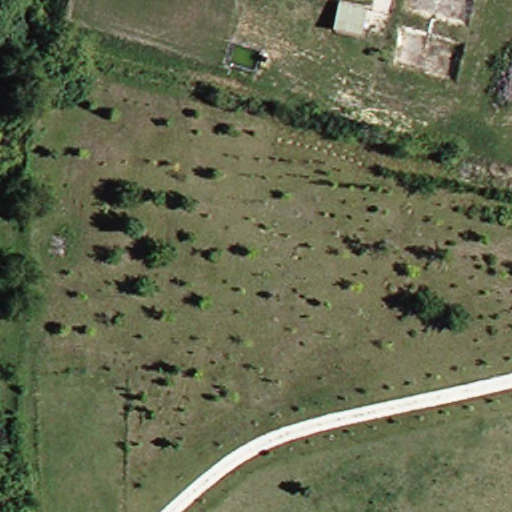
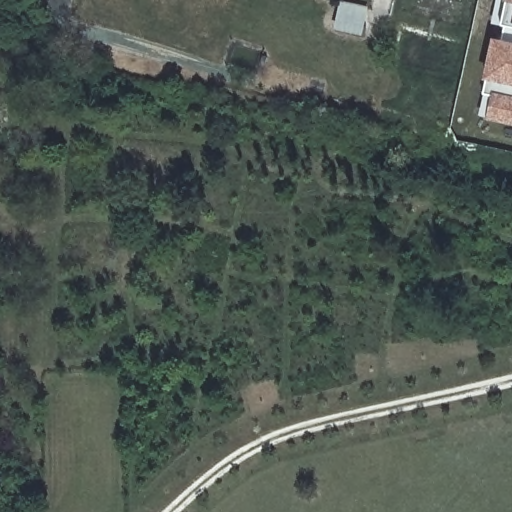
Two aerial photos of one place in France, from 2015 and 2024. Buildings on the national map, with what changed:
new [(479,118),(487,80),(483,79),(492,38),(503,40),(505,26),(500,25),(505,0),(512,0),(512,125),(479,118)]

